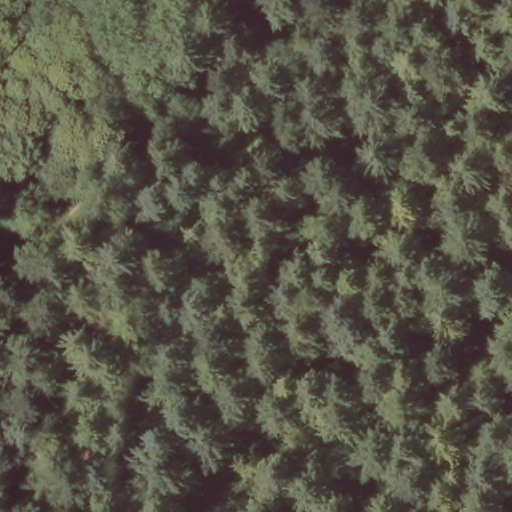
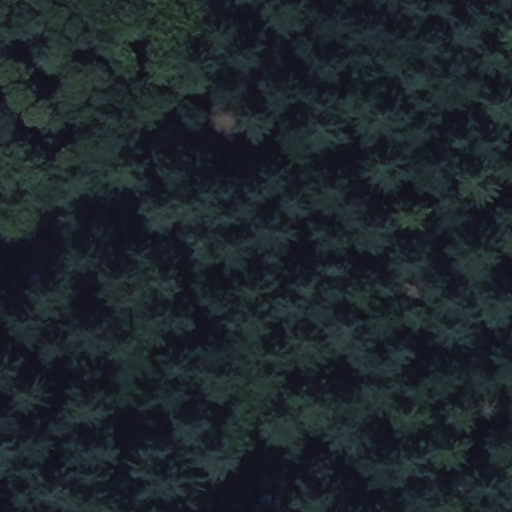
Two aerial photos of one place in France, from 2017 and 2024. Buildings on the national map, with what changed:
unchanged [(189,141),(176,128),(185,116),(199,128),(189,141)]

